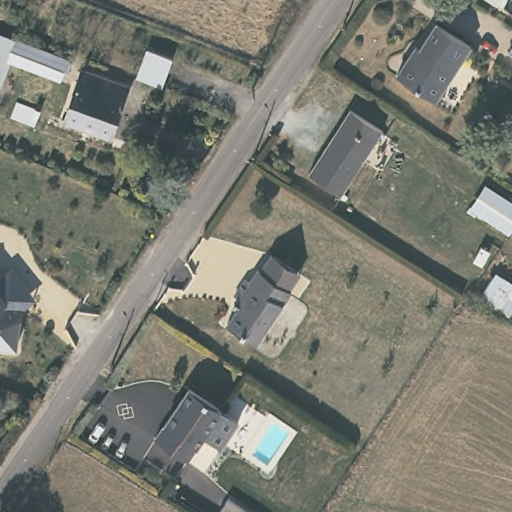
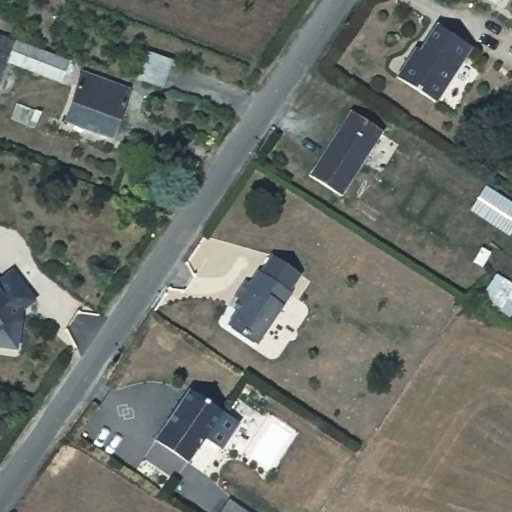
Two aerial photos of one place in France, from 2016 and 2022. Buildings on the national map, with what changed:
unchanged [(417,48),(421,51),(437,25),(472,47),(437,102),(398,78),(417,48)]
unchanged [(54,79),(2,60),(0,63),(0,32),(62,55),(54,79)]
unchanged [(512,47),(512,53),(509,52),(512,47)]
unchanged [(171,62),(161,87),(136,79),(145,54),(171,62)]
unchanged [(124,87),(105,136),(61,121),(78,71),(124,87)]
unchanged [(380,132),(343,194),(311,174),(347,112),(380,132)]
unchanged [(512,200),(512,234),(511,236),(469,211),(487,185),(512,200)]
unchanged [(254,338),(225,318),(234,305),(231,302),(237,293),(232,290),(242,274),(247,277),(255,265),(257,266),(268,250),(297,269),(287,286),(288,287),(254,338)]
unchanged [(0,346),(0,286),(13,303),(21,312),(16,348),(0,346)]
unchanged [(212,443),(195,432),(179,457),(147,434),(182,383),(214,406),(230,417),(212,443)]
unchanged [(249,512),(218,512),(227,498),(249,512)]

